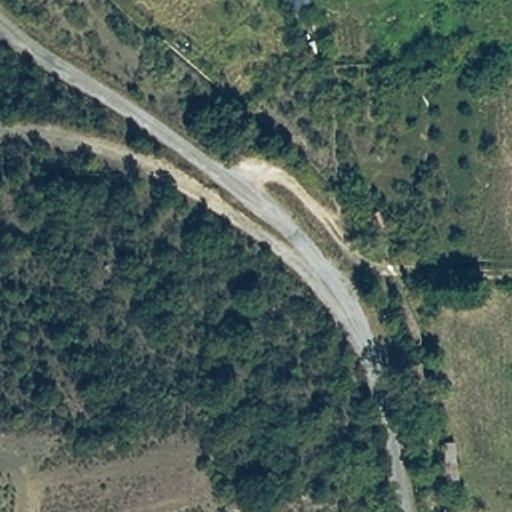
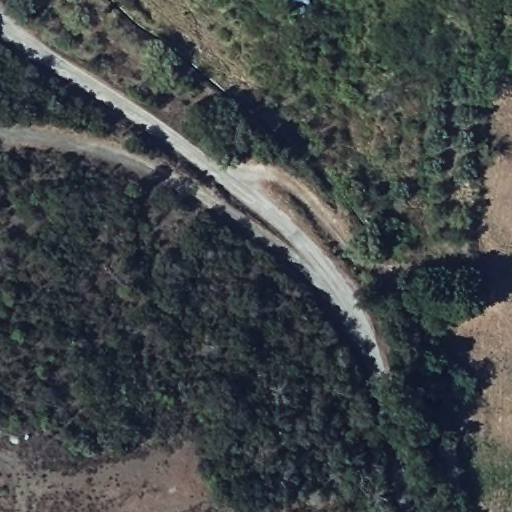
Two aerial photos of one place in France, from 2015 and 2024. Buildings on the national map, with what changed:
unchanged [(386,226),(375,233),(363,219),(377,210),(386,226)]
unchanged [(460,491),(447,492),(442,443),(455,442),(460,491)]

